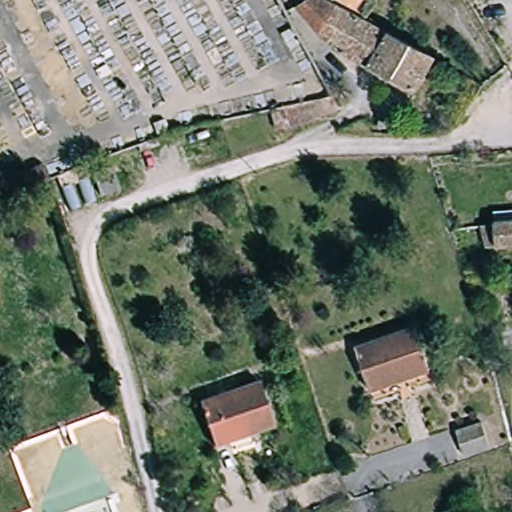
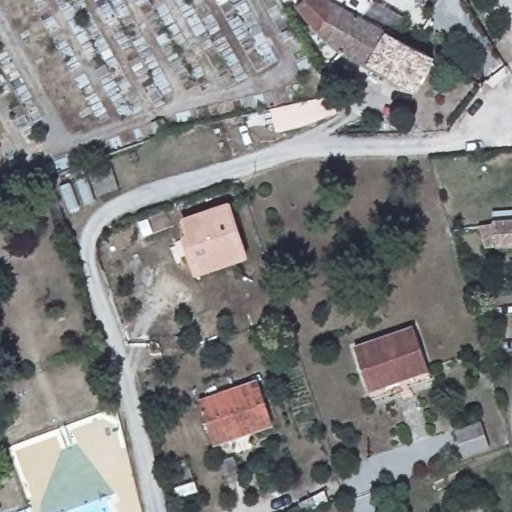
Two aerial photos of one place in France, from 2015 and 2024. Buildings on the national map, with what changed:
unchanged [(329,0),(347,0),(341,11),(364,23),(383,34),(365,69),(338,54),(317,37),(300,16),(293,0),(321,0),(327,3),(329,0)]
unchanged [(351,0),(368,0),(380,13),(372,19),(351,0)]
unchanged [(365,69),(383,34),(432,61),(414,96),(390,82),(365,69)]
unchanged [(334,114),(309,119),(311,126),(279,132),(274,111),(330,100),(334,114)]
new [(188,237),(183,221),(231,205),(249,258),(197,277),(183,239),(188,237)]
unchanged [(512,220),(512,247),(487,250),(484,222),(512,220)]
unchanged [(373,392),(358,347),(418,327),(432,367),(387,382),(389,387),(373,392)]
unchanged [(232,440),(232,444),(218,450),(202,402),(258,382),(273,424),(232,440)]
unchanged [(467,458),(459,432),(483,423),(492,449),(467,458)]

